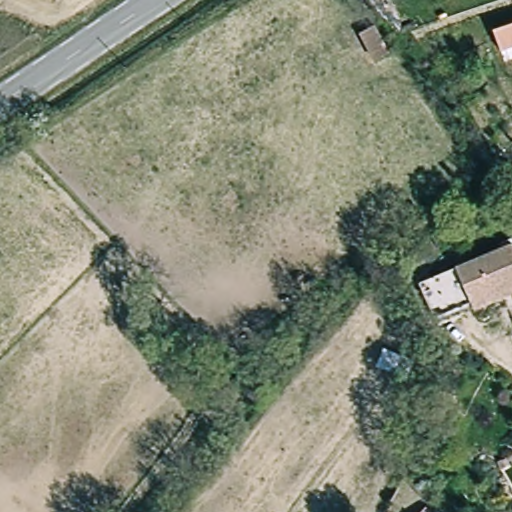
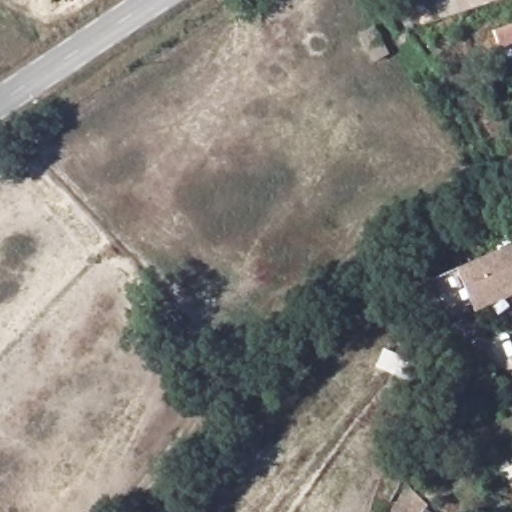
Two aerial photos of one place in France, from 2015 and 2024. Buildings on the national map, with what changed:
unchanged [(351,20),(371,14),(389,54),(371,59),(351,20)]
unchanged [(495,58),(486,35),(512,27),(512,53),(495,58)]
unchanged [(434,308),(419,272),(512,238),(512,288),(475,303),(436,315),(434,308)]
unchanged [(430,512),(423,512),(426,508),(430,512)]

